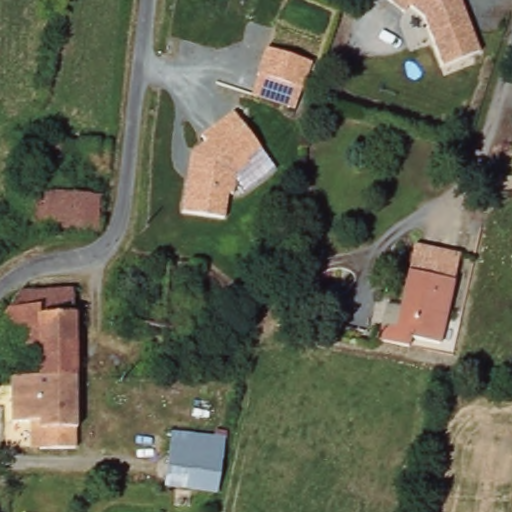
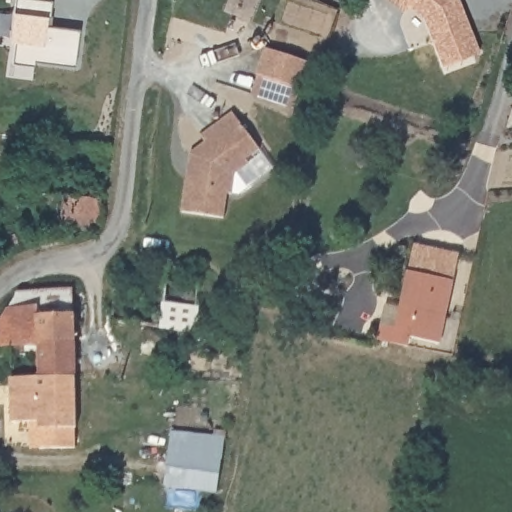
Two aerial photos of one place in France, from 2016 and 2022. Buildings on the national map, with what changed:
new [(50,25),(81,30),(76,65),(35,59),(34,64),(14,61),(16,42),(10,41),(14,11),(16,0),(52,0),(53,0),(50,25)]
unchanged [(446,65),(430,18),(413,5),(404,15),(384,0),(466,0),(484,54),(446,65)]
unchanged [(269,50),(314,65),(305,91),(261,75),(269,50)]
unchanged [(192,153),(196,151),(208,143),(203,136),(236,113),(262,150),(249,160),(251,164),(247,168),(237,174),(234,193),(229,192),(225,217),(183,209),(192,153)]
unchanged [(105,197),(102,229),(35,225),(38,189),(105,197)]
unchanged [(457,254),(451,282),(408,273),(410,265),(416,244),(457,254)]
unchanged [(451,282),(438,344),(409,338),(407,346),(376,339),(379,324),(394,327),(408,273),(451,282)]
unchanged [(17,353),(3,350),(2,328),(23,296),(78,293),(79,379),(16,377),(17,353)]
unchanged [(34,426),(18,424),(15,424),(15,421),(16,377),(79,379),(81,449),(44,449),(33,449),(34,426)]
unchanged [(224,443),(217,495),(164,489),(165,482),(170,438),(224,443)]

